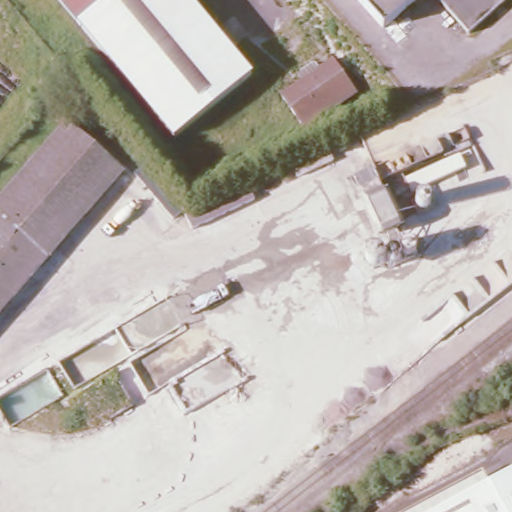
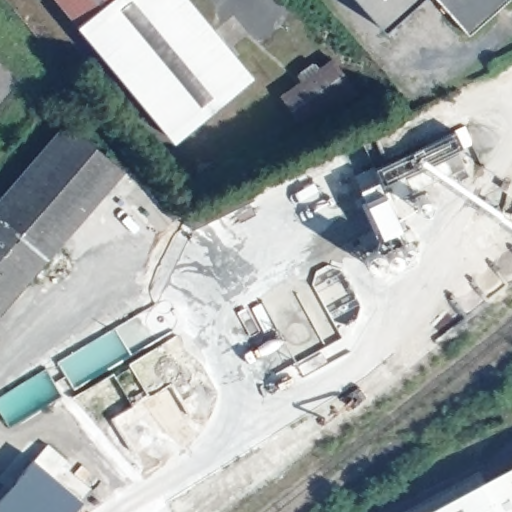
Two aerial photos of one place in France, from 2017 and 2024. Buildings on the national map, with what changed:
unchanged [(177,138),(81,22),(62,0),(190,0),(252,75),(177,138)]
unchanged [(358,0),(417,0),(384,29),(358,0)]
unchanged [(438,0),(507,0),(468,35),(438,0)]
unchanged [(298,69),(313,59),(317,65),(332,55),(356,88),(306,124),(282,90),(302,76),(298,69)]
unchanged [(0,305),(0,191),(65,117),(104,151),(110,145),(123,156),(117,162),(122,166),(0,305)]
demolished [(190,234),(182,221),(184,219),(246,190),(252,202),(190,234)]
new [(81,497),(68,512),(0,512),(0,495),(33,456),(81,497)]
unchanged [(512,474),(512,512),(438,512),(512,474)]

